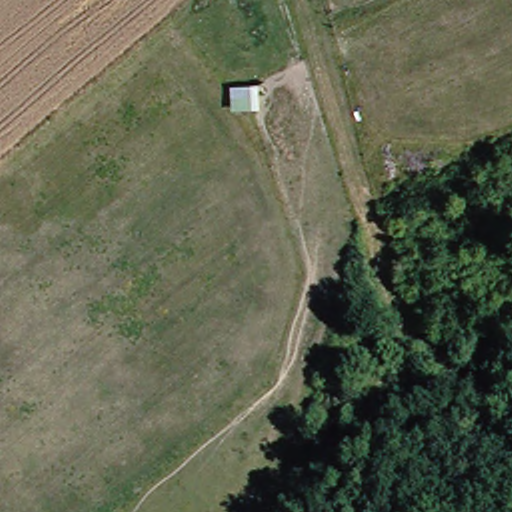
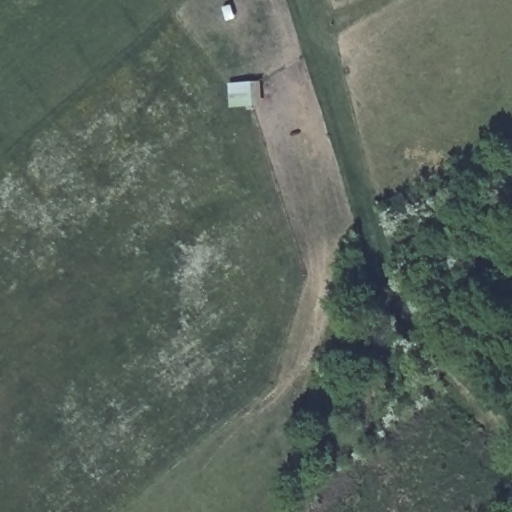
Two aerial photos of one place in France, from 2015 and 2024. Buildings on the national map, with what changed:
unchanged [(234,83),(256,82),(257,109),(237,110),(234,83)]

